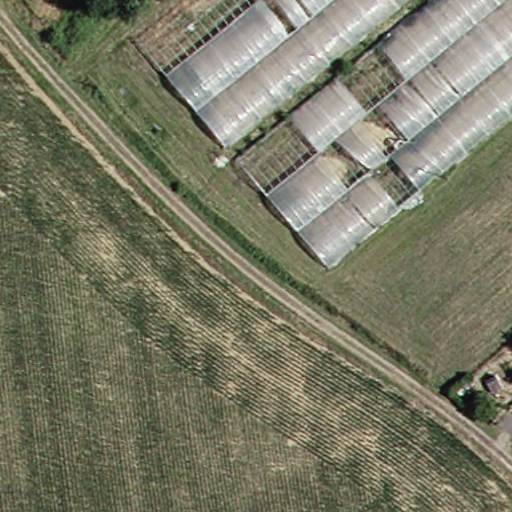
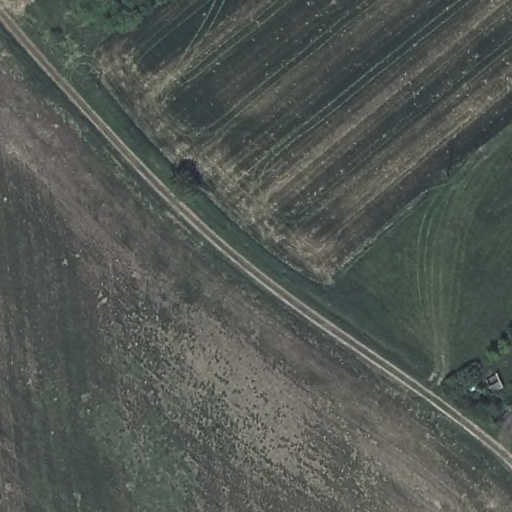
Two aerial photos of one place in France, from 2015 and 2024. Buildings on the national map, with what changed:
demolished [(218,147),(133,43),(185,0),(397,0),(218,147)]
demolished [(317,268),(228,161),(423,0),(512,0),(512,108),(317,268)]

